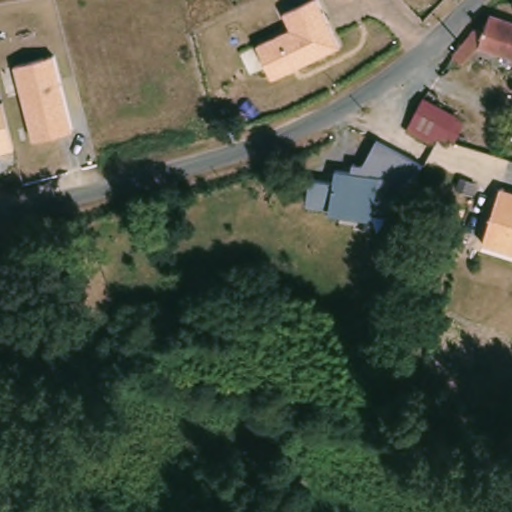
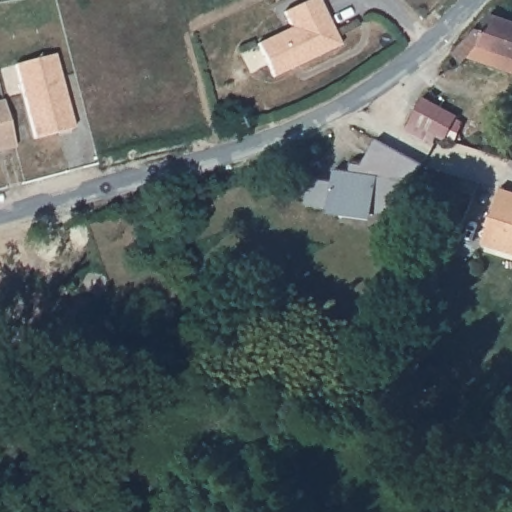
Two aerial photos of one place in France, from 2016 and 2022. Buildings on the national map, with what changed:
unchanged [(291,26),(284,11),(311,0),(321,0),(339,46),(273,76),(258,42),(291,26)]
unchanged [(478,31),(486,34),(493,16),(493,15),(499,17),(512,21),(512,59),(464,44),(478,31)]
unchanged [(14,64),(53,54),(75,130),(36,140),(14,64)]
unchanged [(431,134),(428,139),(408,130),(422,100),(460,115),(448,141),(431,134)]
unchanged [(16,150),(0,154),(0,102),(2,101),(16,150)]
unchanged [(309,176),(334,177),(336,166),(350,169),(353,159),(364,161),(375,140),(421,162),(404,192),(388,184),(378,217),(330,209),(306,204),(309,176)]
unchanged [(512,192),(512,252),(483,244),(500,189),(512,192)]

